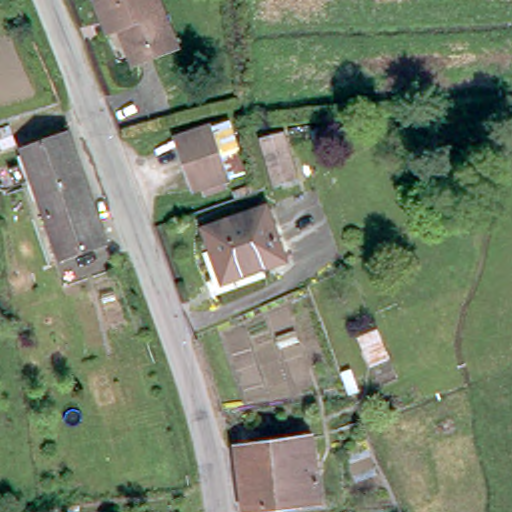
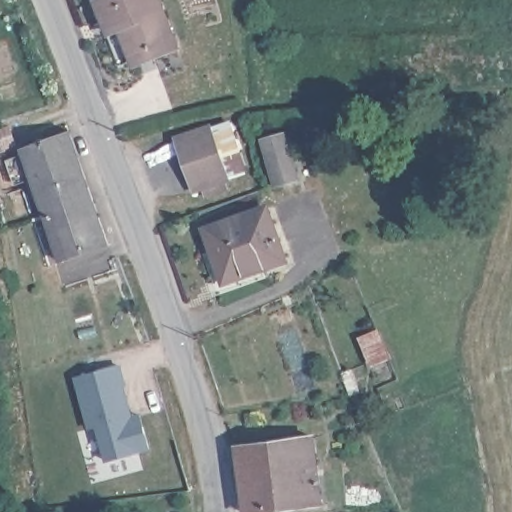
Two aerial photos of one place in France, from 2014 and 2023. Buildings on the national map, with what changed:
unchanged [(105,23),(97,3),(103,0),(157,0),(176,49),(136,66),(121,31),(110,35),(105,23)]
unchanged [(205,132),(222,126),(241,179),(223,184),(205,132)]
unchanged [(0,130),(9,127),(15,147),(0,151),(0,130)]
unchanged [(190,195),(172,143),(205,132),(223,184),(190,195)]
unchanged [(69,133),(108,244),(60,260),(33,181),(15,186),(9,169),(27,164),(22,149),(69,133)]
unchanged [(276,184),(269,157),(264,141),(283,136),(288,152),(296,179),(276,184)]
unchanged [(219,290),(204,250),(213,247),(205,225),(266,203),(285,255),(263,263),(266,273),(219,290)]
unchanged [(373,334),(382,360),(370,364),(359,339),(373,334)]
new [(142,426),(148,450),(106,461),(96,426),(89,429),(74,378),(119,366),(123,383),(121,383),(131,418),(139,415),(142,426)]
unchanged [(341,374),(351,371),(359,392),(350,395),(341,374)]
unchanged [(314,438),(321,504),(249,512),(244,512),(236,447),(314,438)]

